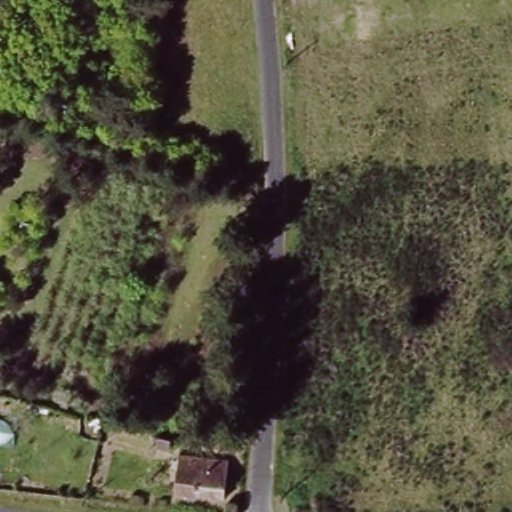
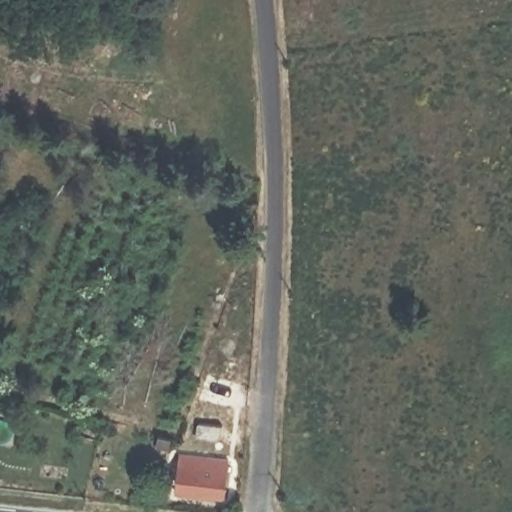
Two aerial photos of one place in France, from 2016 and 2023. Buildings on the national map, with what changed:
unchanged [(192,440),(231,450),(221,485),(169,472),(176,447),(189,451),(192,440)]

